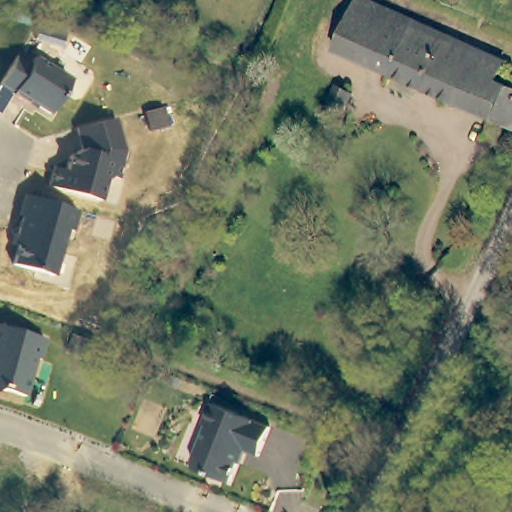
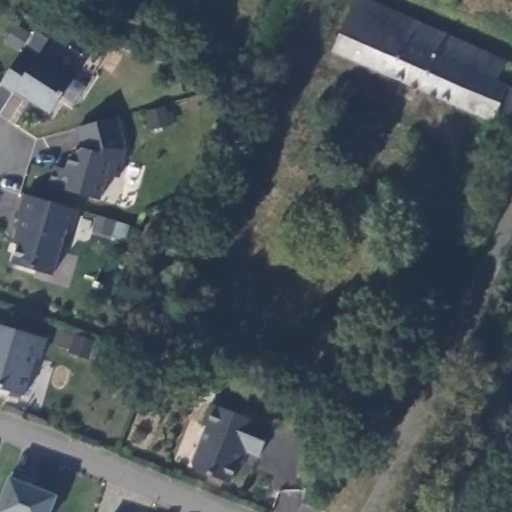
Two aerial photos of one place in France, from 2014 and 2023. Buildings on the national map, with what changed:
unchanged [(512,125),(336,46),(356,0),(375,0),(508,61),(500,81),(512,86),(512,125)]
unchanged [(10,71),(19,57),(33,65),(38,58),(73,80),(51,115),(30,102),(28,105),(14,96),(15,94),(1,86),(10,71)]
unchanged [(331,101),(338,87),(352,94),(345,107),(331,101)]
unchanged [(55,165),(65,169),(67,157),(82,148),(76,127),(118,117),(126,149),(121,177),(114,175),(106,179),(102,200),(51,186),(55,165)]
unchanged [(16,242),(14,240),(21,214),(19,214),(26,195),(78,209),(73,229),(68,228),(53,275),(12,264),(16,242)]
unchanged [(48,341),(42,362),(37,361),(26,399),(0,391),(0,328),(48,341)]
unchanged [(262,464),(246,457),(232,491),(197,477),(195,471),(209,435),(205,433),(214,411),(274,435),(262,464)]
new [(0,512),(0,503),(10,477),(13,473),(32,481),(31,486),(57,496),(51,512),(0,512)]

